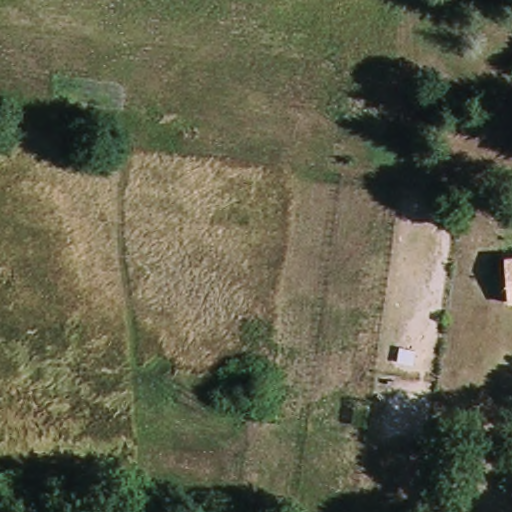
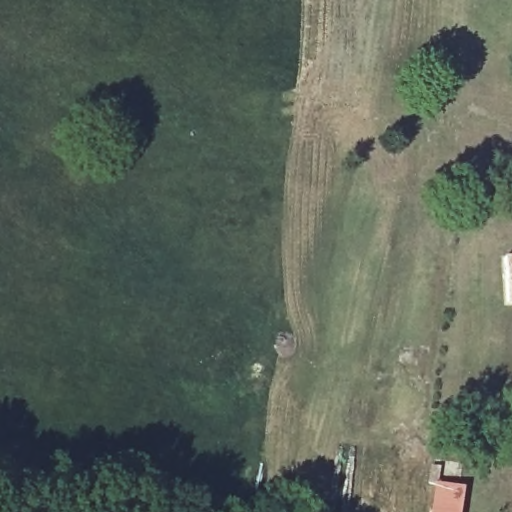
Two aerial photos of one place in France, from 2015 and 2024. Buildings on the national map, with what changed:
unchanged [(497,258),(512,257),(512,303),(500,303),(497,258)]
new [(463,486),(460,512),(430,512),(434,482),(463,486)]

